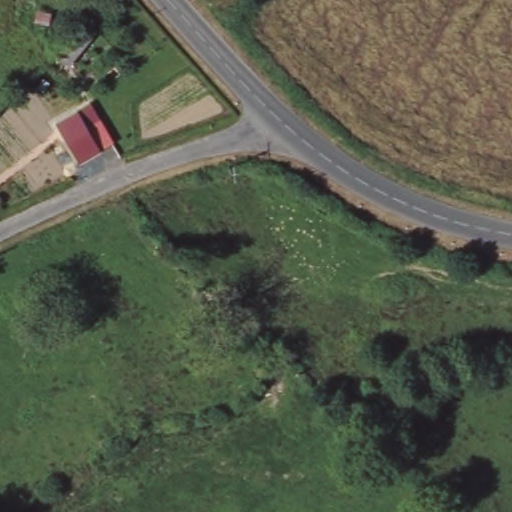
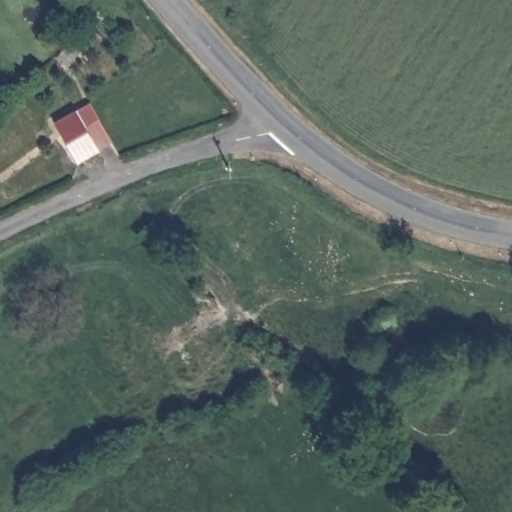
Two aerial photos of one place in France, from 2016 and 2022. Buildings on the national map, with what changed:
unchanged [(66,135),(74,130),(69,117),(95,101),(117,141),(84,161),(66,135)]

